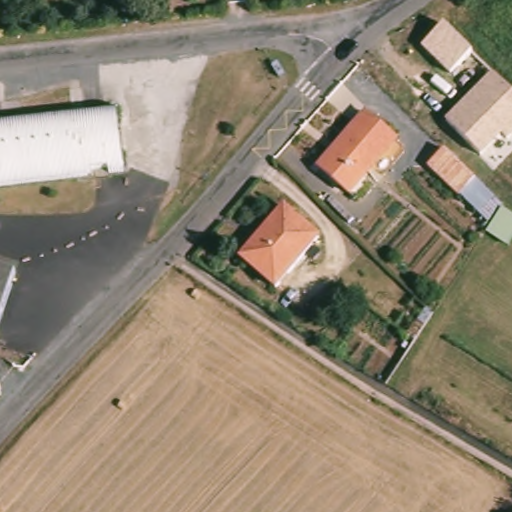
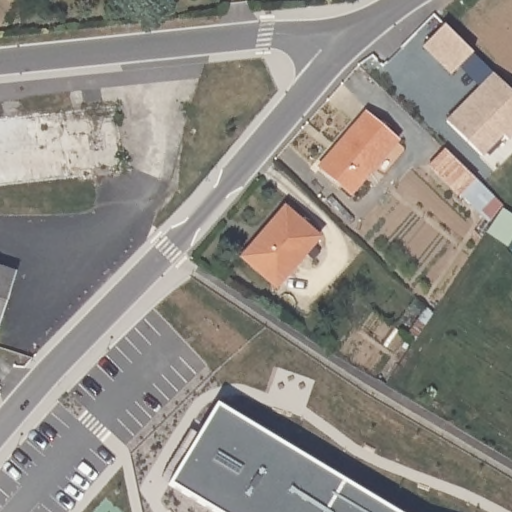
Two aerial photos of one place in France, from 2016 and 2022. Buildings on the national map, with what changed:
unchanged [(492,73),(512,92),(512,138),(510,141),(503,135),(482,155),(446,120),(492,73)]
demolished [(116,96),(156,90),(167,193),(127,196),(124,175),(117,110),(116,96)]
unchanged [(117,110),(124,175),(0,189),(0,122),(117,110)]
unchanged [(345,191),(316,164),(363,112),(393,141),(345,191)]
unchanged [(507,204),(491,220),(432,163),(448,147),(507,204)]
unchanged [(276,285),(243,255),(287,206),(318,236),(276,285)]
unchanged [(14,271),(0,313),(0,267),(14,271)]
new [(167,483),(217,402),(396,512),(214,512),(167,483)]

